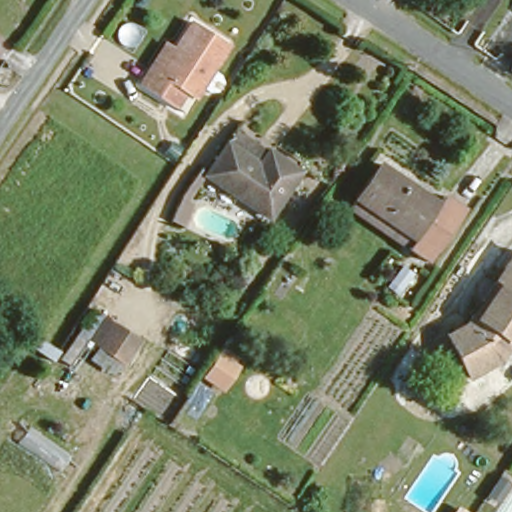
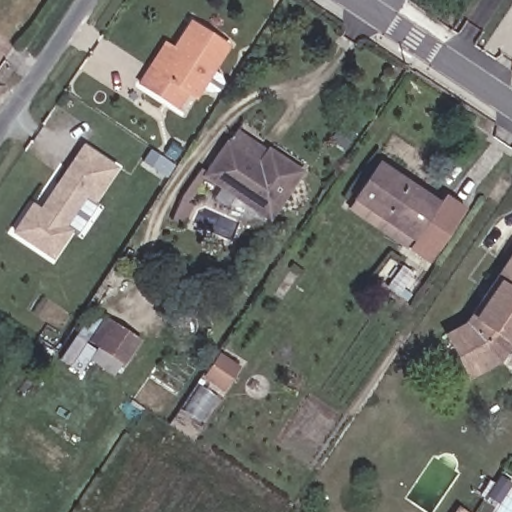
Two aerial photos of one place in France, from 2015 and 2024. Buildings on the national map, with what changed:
unchanged [(173,101),(136,79),(148,60),(164,36),(175,41),(195,10),(235,35),(197,93),(183,85),(173,101)]
unchanged [(230,187),(207,172),(227,144),(257,164),(270,146),(272,148),(302,168),(271,214),(230,187)]
new [(33,207),(41,213),(55,193),(57,195),(61,189),(60,184),(85,149),(117,170),(95,203),(86,197),(65,229),(71,233),(54,259),(15,234),(33,207)]
unchanged [(408,244),(412,237),(353,195),(376,161),(435,201),(439,197),(460,210),(428,258),(408,244)]
unchanged [(506,322),(501,329),(512,358),(471,378),(447,324),(475,310),(512,253),(512,325),(506,322)]
unchanged [(114,349),(92,334),(107,313),(129,328),(145,338),(130,360),(114,349)]

